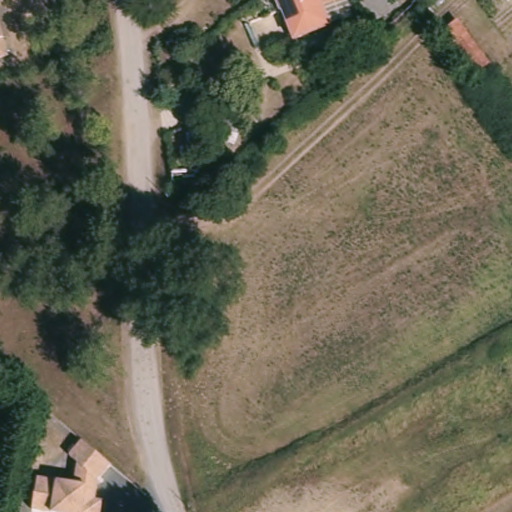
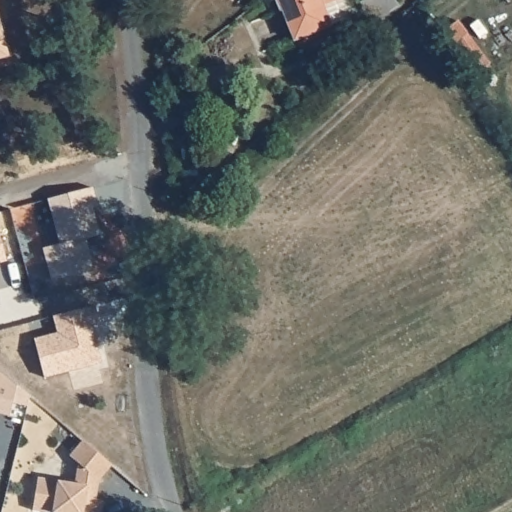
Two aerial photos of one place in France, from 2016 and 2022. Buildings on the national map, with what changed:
unchanged [(288,47),(271,0),(312,0),(325,32),(288,47)]
unchanged [(8,52),(0,55),(0,20),(8,52)]
unchanged [(487,66),(471,77),(440,34),(454,23),(487,66)]
new [(89,189),(100,235),(83,239),(92,267),(50,278),(42,247),(58,244),(48,198),(89,189)]
new [(33,338),(56,331),(53,315),(95,305),(100,325),(92,326),(100,363),(45,377),(33,338)]
new [(25,405),(23,415),(8,411),(5,423),(0,422),(0,381),(25,405)]
unchanged [(101,510),(101,512),(51,512),(32,507),(40,476),(77,485),(81,464),(73,456),(76,453),(87,442),(113,467),(103,479),(100,482),(95,501),(103,503),(101,510)]

